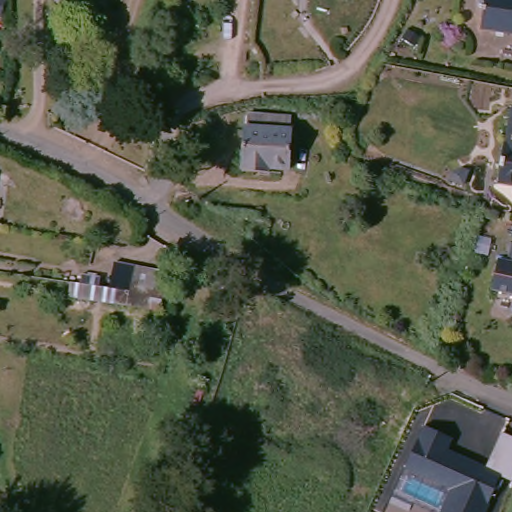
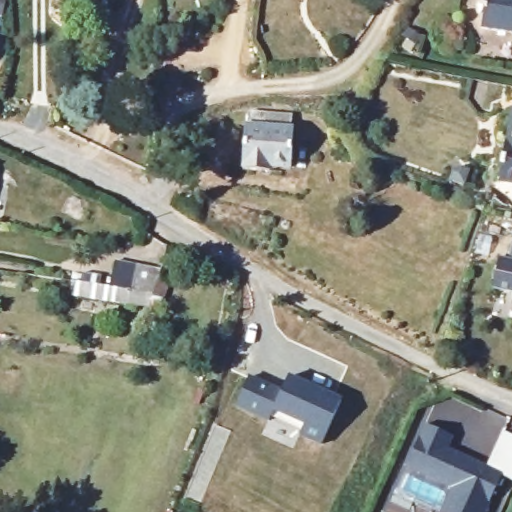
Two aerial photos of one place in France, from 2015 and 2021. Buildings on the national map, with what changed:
unchanged [(512,0),(512,35),(483,29),(487,0),(512,0)]
unchanged [(504,143),(508,143),(512,112),(512,187),(499,185),(504,143)]
unchanged [(293,167),(267,166),(267,172),(247,171),(249,126),(252,126),(253,114),(293,117),(293,130),(295,130),(293,167)]
unchanged [(497,288),(498,282),(502,261),(512,261),(512,291),(497,288)]
unchanged [(72,301),(75,286),(134,293),(139,268),(163,272),(161,282),(174,286),(168,298),(166,314),(72,301)]
new [(249,375),(283,389),(289,373),(343,397),(324,441),(302,432),(306,422),(276,409),(271,419),(238,405),(249,375)]
unchanged [(502,476),(487,512),(438,512),(449,488),(407,470),(424,426),(454,440),(451,450),(489,465),(504,432),(512,437),(512,480),(502,476)]

